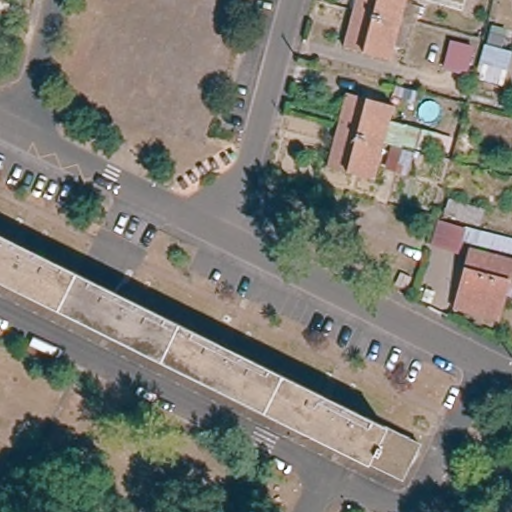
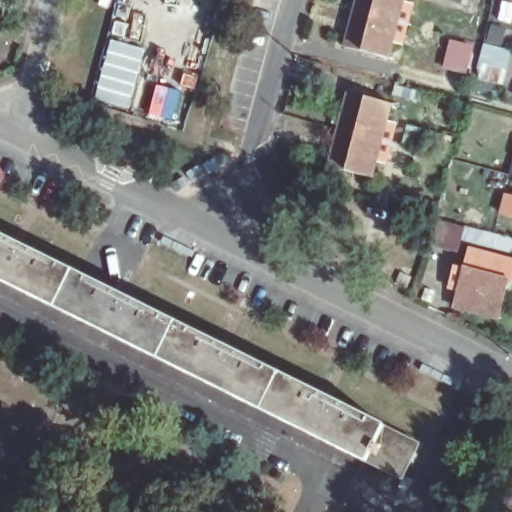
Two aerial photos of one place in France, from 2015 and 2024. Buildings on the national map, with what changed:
unchanged [(355,10),(358,0),(405,0),(399,21),(355,10)]
unchanged [(389,59),(345,47),(355,10),(399,21),(389,59)]
unchanged [(476,81),(485,45),(493,44),(496,35),(512,40),(512,42),(509,49),(512,50),(512,58),(504,88),(476,81)]
new [(454,36),(475,41),(467,70),(446,65),(454,36)]
new [(111,40),(145,49),(128,109),(95,99),(111,40)]
unchanged [(338,129),(349,92),(394,104),(384,141),(338,129)]
unchanged [(375,177),(329,165),(338,129),(384,141),(375,177)]
unchanged [(269,369),(386,427),(420,443),(403,477),(263,408),(84,319),(0,278),(0,235),(39,254),(269,369)]
unchanged [(459,253),(455,265),(433,259),(439,238),(461,244),(512,257),(512,267),(459,253)]
unchanged [(512,278),(512,297),(512,299),(504,296),(497,315),(500,317),(498,324),(494,324),(491,332),(450,319),(455,302),(459,303),(465,284),(462,282),(468,264),(512,278)]
unchanged [(417,281),(412,291),(403,287),(407,276),(417,281)]

